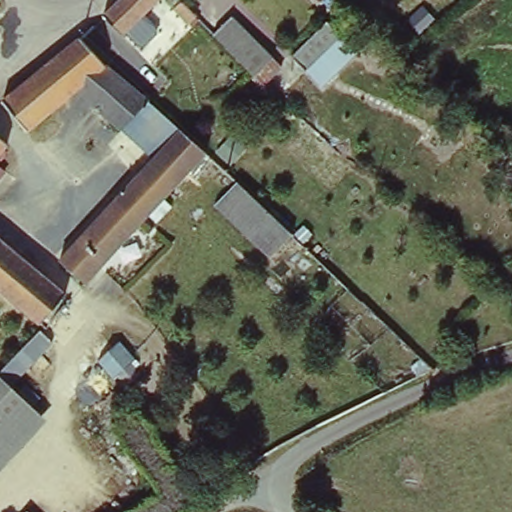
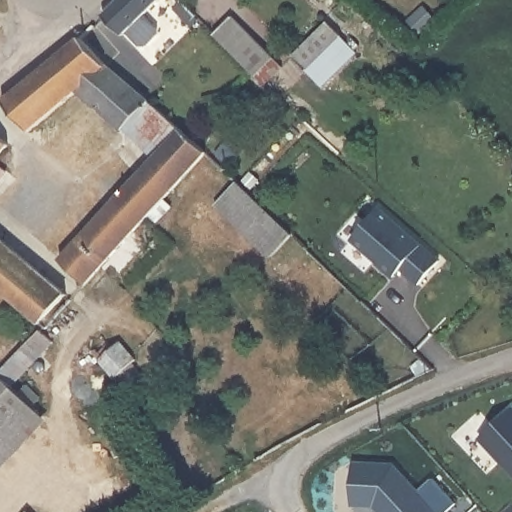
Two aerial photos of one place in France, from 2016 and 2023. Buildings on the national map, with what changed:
unchanged [(157,0),(124,35),(101,16),(116,0),(157,0)]
unchanged [(187,0),(200,13),(192,19),(176,3),(178,0),(187,0)]
unchanged [(227,45),(215,32),(228,17),(282,66),(265,85),(225,46),(227,45)]
unchanged [(292,61),(296,55),(326,23),(341,38),(355,51),(325,86),(307,75),(292,61)]
unchanged [(122,131),(75,90),(27,131),(1,103),(78,39),(92,25),(119,51),(106,64),(148,101),(122,131)]
unchanged [(148,101),(180,128),(177,131),(152,159),(122,131),(148,101)]
unchanged [(60,261),(180,128),(206,151),(86,284),(60,261)]
unchanged [(0,155),(0,141),(7,146),(0,155)]
new [(0,182),(0,169),(6,175),(0,182)]
unchanged [(288,235),(265,259),(211,207),(209,204),(232,181),(234,182),(288,235)]
new [(440,261),(419,288),(400,271),(394,276),(351,240),(379,209),(440,261)]
unchanged [(0,241),(65,296),(39,326),(0,293),(0,241)]
unchanged [(52,344),(10,389),(0,380),(0,371),(38,330),(52,344)]
unchanged [(121,372),(116,374),(102,356),(119,342),(142,372),(128,381),(121,372)]
unchanged [(36,415),(0,454),(0,380),(10,389),(36,415)]
new [(478,439),(512,409),(512,476),(478,439)]
new [(355,462),(395,464),(419,491),(433,478),(457,503),(446,512),(382,512),(375,504),(352,502),(355,462)]

